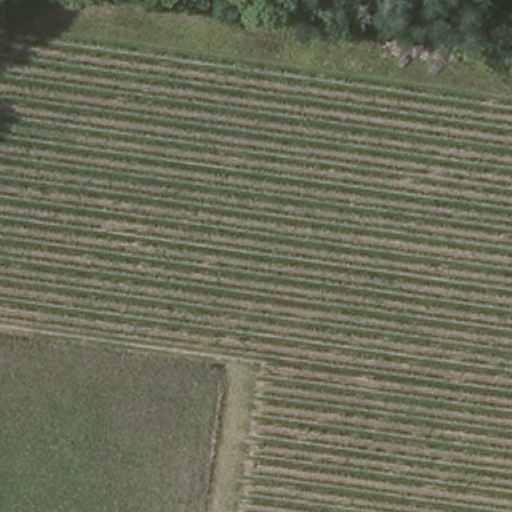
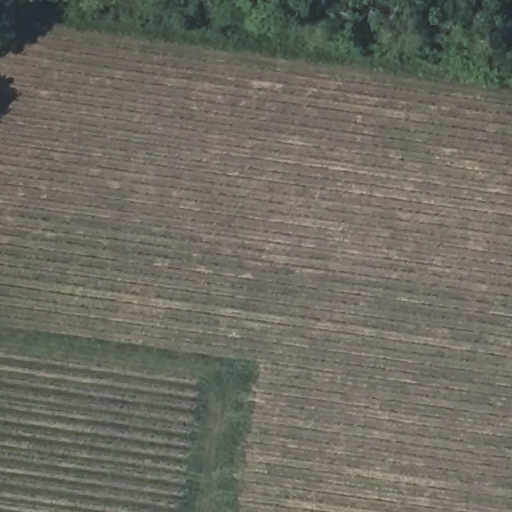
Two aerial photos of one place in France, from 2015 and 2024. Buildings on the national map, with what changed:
[]

